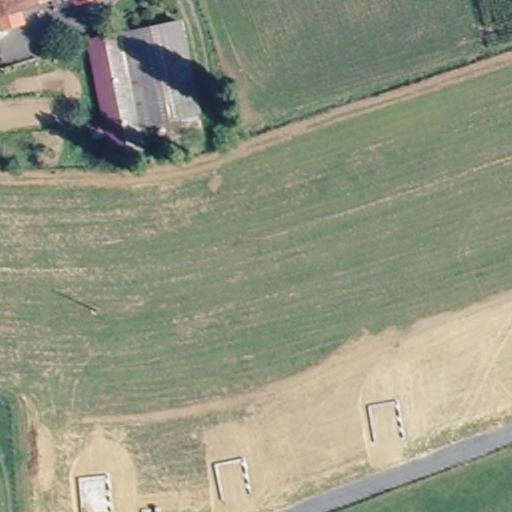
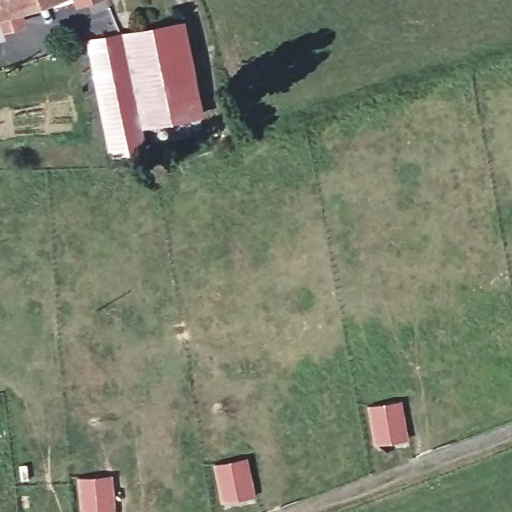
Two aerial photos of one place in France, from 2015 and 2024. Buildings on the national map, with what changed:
unchanged [(0,13),(0,0),(38,0),(0,13)]
unchanged [(133,32),(175,22),(193,113),(151,122),(133,32)]
unchanged [(132,127),(113,37),(133,32),(151,122),(132,127)]
unchanged [(0,35),(0,34),(1,35),(0,35)]
unchanged [(132,127),(138,155),(106,162),(84,45),(113,37),(132,127)]
new [(397,405),(404,442),(375,447),(368,410),(397,405)]
new [(243,463),(251,500),(222,506),(214,469),(243,463)]
new [(110,512),(80,512),(77,482),(107,480),(110,512)]

